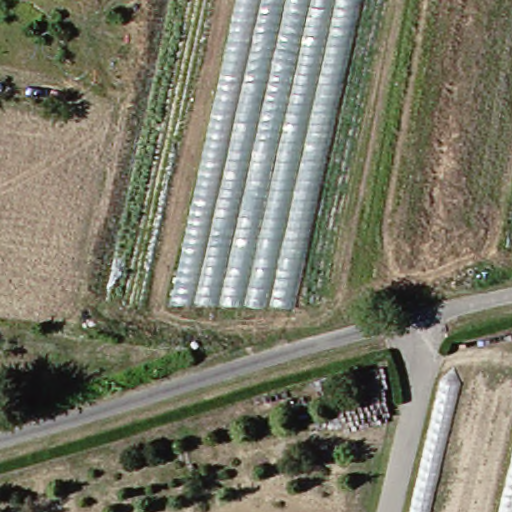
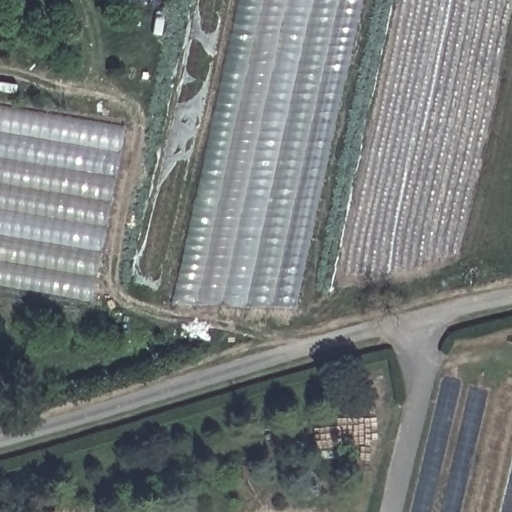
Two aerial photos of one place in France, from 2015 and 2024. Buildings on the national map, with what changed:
unchanged [(368,0),(302,304),(177,298),(242,0),(368,0)]
new [(89,302),(0,288),(0,106),(125,127),(89,302)]
demolished [(34,313),(0,309),(0,260),(39,266),(34,313)]
demolished [(464,382),(434,512),(411,512),(441,378),(464,382)]
demolished [(512,430),(493,512),(469,512),(496,391),(512,394),(512,430)]

